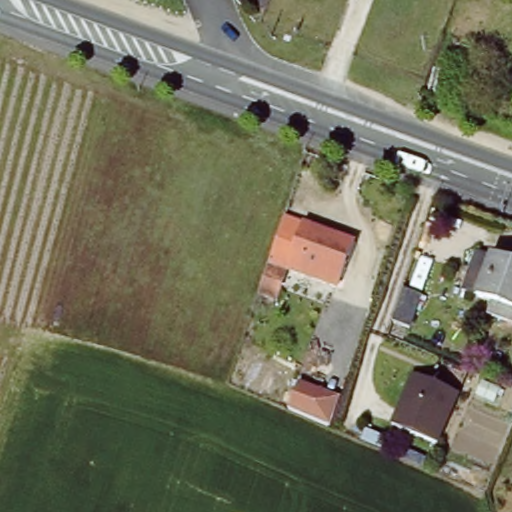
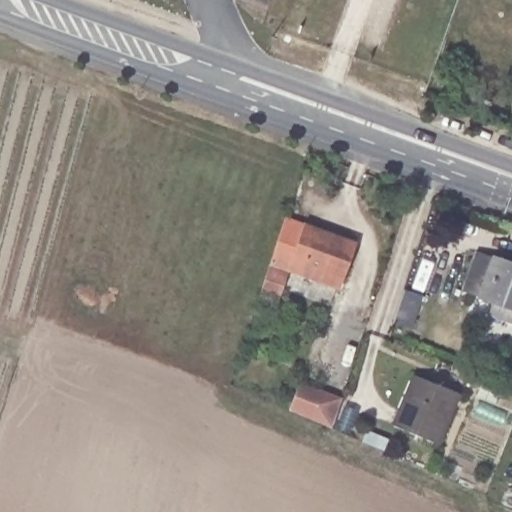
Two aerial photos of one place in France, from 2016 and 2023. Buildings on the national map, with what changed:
unchanged [(361,238),(340,290),(283,269),(275,265),(292,222),(295,214),(361,238)]
unchanged [(275,265),(283,269),(271,303),(256,294),(280,218),(292,222),(275,265)]
unchanged [(512,260),(512,318),(494,312),(497,300),(469,289),(484,249),(512,260)]
unchanged [(396,424),(417,374),(458,394),(437,443),(396,424)]
unchanged [(336,399),(328,424),(286,409),(297,380),(336,399)]

